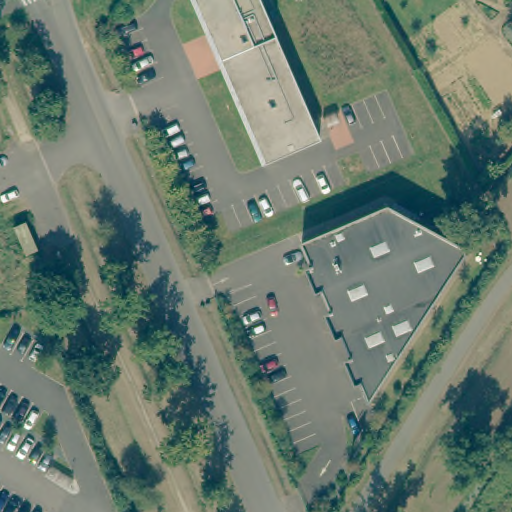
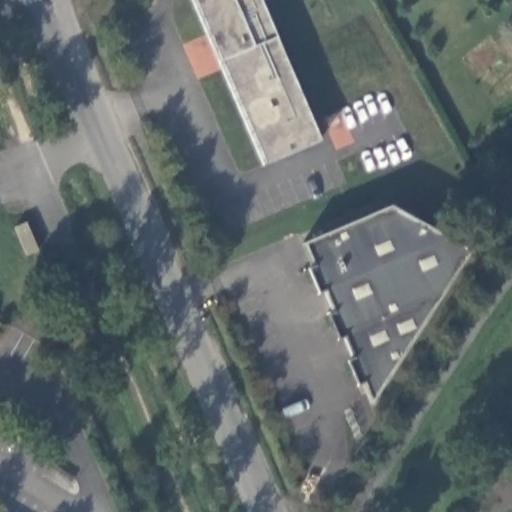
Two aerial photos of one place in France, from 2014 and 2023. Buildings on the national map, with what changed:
unchanged [(314,142),(263,163),(192,0),(253,0),(314,142)]
unchanged [(385,205),(461,245),(465,253),(369,404),(298,244),(385,205)]
unchanged [(26,225),(38,252),(26,257),(14,230),(26,225)]

